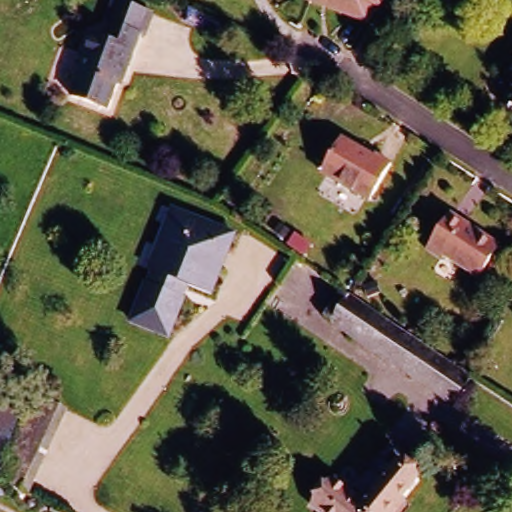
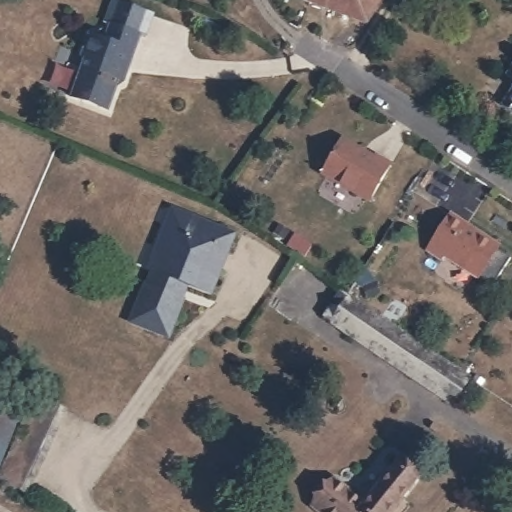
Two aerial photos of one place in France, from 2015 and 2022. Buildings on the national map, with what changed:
unchanged [(301,5),(302,0),(377,0),(361,26),(301,5)]
unchanged [(119,74),(118,82),(78,66),(82,52),(76,51),(83,29),(103,36),(106,19),(138,28),(133,46),(126,74),(119,74)]
unchanged [(112,104),(71,91),(78,66),(118,82),(112,104)]
unchanged [(506,77),(512,68),(512,81),(506,77)]
unchanged [(512,89),(512,111),(501,104),(512,89)]
unchanged [(371,202),(319,173),(339,138),(371,156),(375,150),(396,160),(371,202)]
unchanged [(168,334),(130,317),(146,280),(151,281),(157,266),(151,264),(158,246),(153,243),(162,220),(169,202),(181,207),(234,230),(208,291),(190,283),(185,295),(168,334)]
unchanged [(452,211),(504,245),(483,277),(450,256),(446,263),(427,249),(452,211)]
unchanged [(460,403),(351,335),(331,323),(347,298),(366,310),(475,377),(460,403)]
unchanged [(31,391),(68,410),(33,493),(0,481),(0,394),(24,403),(31,391)]
unchanged [(313,499),(334,475),(362,502),(396,463),(412,478),(384,512),(327,512),(313,499)]

